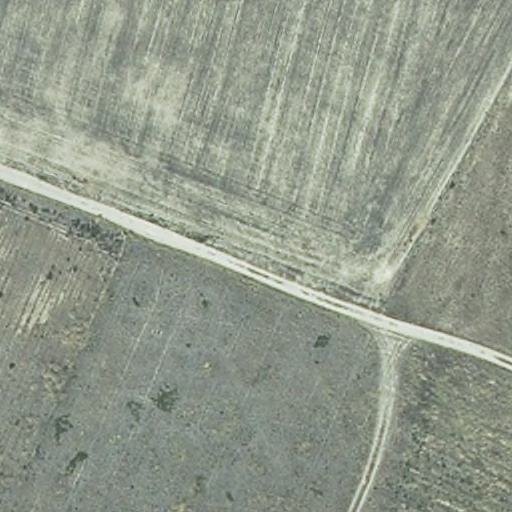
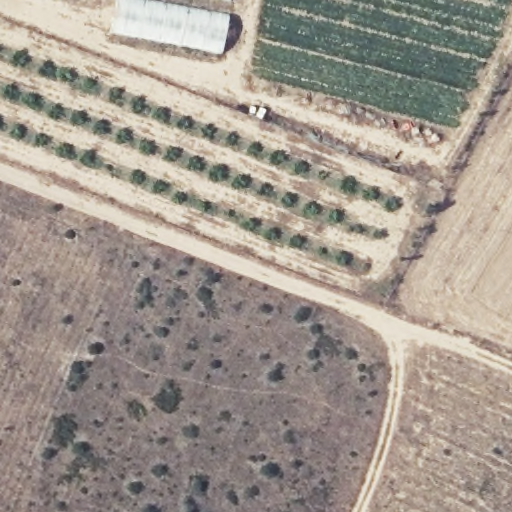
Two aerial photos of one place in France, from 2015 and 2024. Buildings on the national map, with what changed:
new [(222,49),(111,29),(117,0),(230,0),(222,49)]

